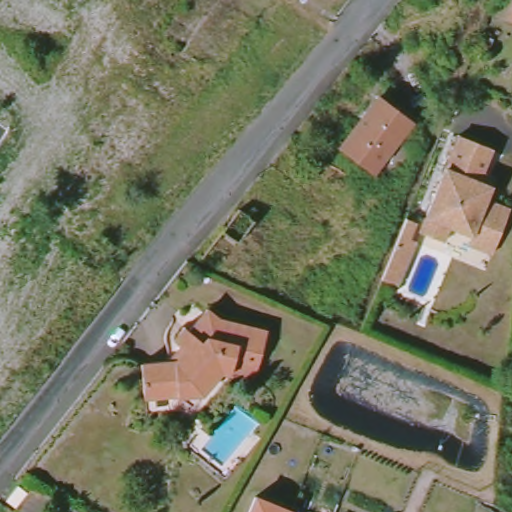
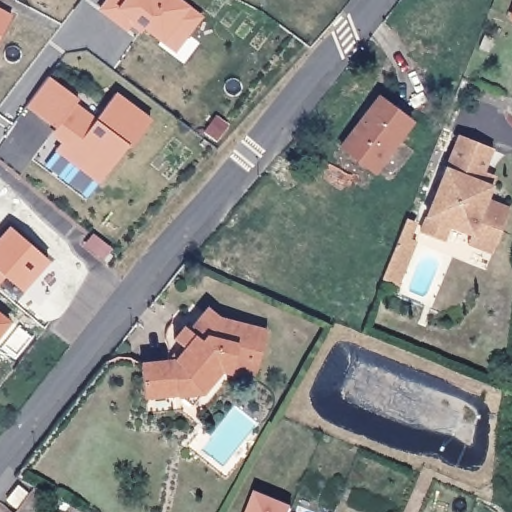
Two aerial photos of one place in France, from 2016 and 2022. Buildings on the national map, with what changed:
new [(163,39),(146,26),(143,30),(131,22),(127,28),(101,8),(107,0),(181,0),(201,15),(188,33),(176,49),(163,39)]
new [(0,38),(0,9),(12,15),(0,38)]
unchanged [(479,47),(484,35),(492,39),(488,51),(479,47)]
new [(75,163),(56,149),(64,136),(55,129),(56,127),(26,105),(48,75),(78,97),(74,103),(95,119),(115,92),(151,119),(130,146),(128,144),(104,175),(100,181),(75,163)]
unchanged [(342,146),(379,97),(411,121),(374,170),(342,146)]
unchanged [(464,244),(466,240),(444,231),(439,241),(417,232),(455,135),(488,148),(475,180),(488,185),(482,199),(505,208),(493,240),(487,253),(464,244)]
demolished [(237,210),(238,208),(253,219),(237,240),(222,229),(237,210)]
unchanged [(410,222),(404,239),(411,242),(394,287),(378,280),(377,280),(402,219),(410,222)]
new [(4,277),(0,282),(0,235),(8,225),(48,260),(23,290),(4,277)]
unchanged [(218,367),(193,406),(177,395),(144,398),(142,363),(175,361),(185,349),(173,340),(183,325),(189,329),(208,304),(219,313),(258,323),(264,325),(256,356),(251,377),(232,371),(227,370),(218,367)]
new [(0,333),(0,313),(9,320),(0,333)]
unchanged [(290,506),(288,512),(247,512),(254,492),(290,506)]

